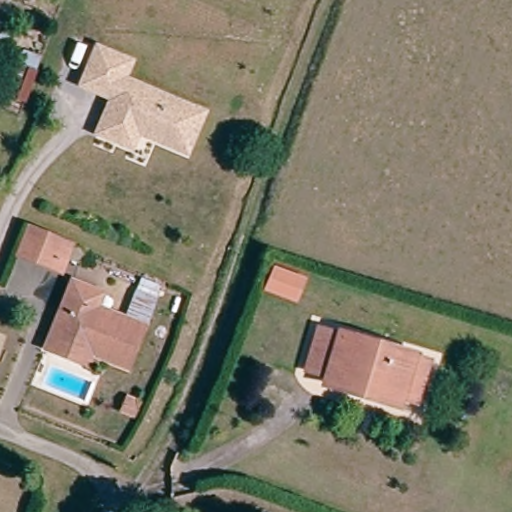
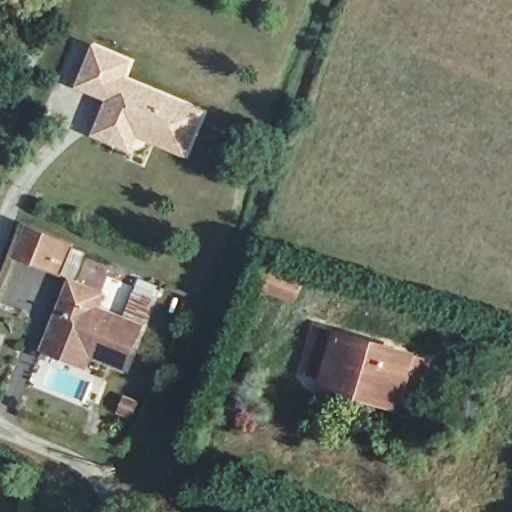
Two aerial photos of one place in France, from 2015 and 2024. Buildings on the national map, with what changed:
unchanged [(117,136),(98,129),(112,91),(81,80),(95,42),(127,55),(121,72),(137,79),(202,104),(187,144),(138,125),(132,141),(117,136)]
unchanged [(0,99),(0,87),(14,51),(37,58),(21,105),(0,99)]
unchanged [(42,269),(9,258),(20,231),(48,242),(65,249),(54,273),(42,269)]
unchanged [(42,353),(48,335),(61,296),(69,274),(96,284),(89,306),(151,327),(137,366),(91,350),(85,368),(42,353)]
unchanged [(341,399),(344,388),(316,377),(319,369),(300,363),(314,322),(424,360),(410,402),(394,394),(392,403),(364,392),(360,404),(341,399)]
unchanged [(159,392),(154,405),(144,402),(149,389),(159,392)]

